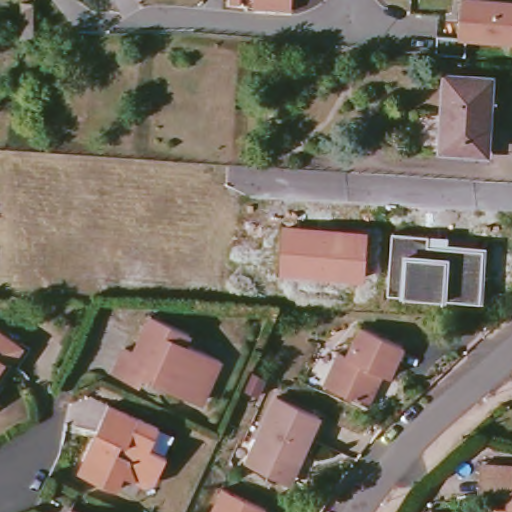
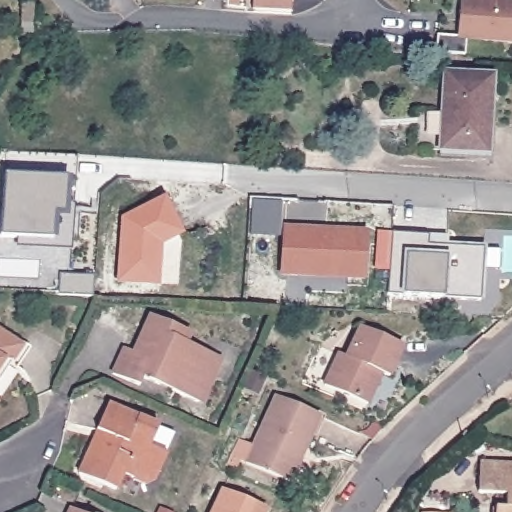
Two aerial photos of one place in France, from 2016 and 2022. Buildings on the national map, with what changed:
unchanged [(247,0),(246,6),(232,5),(232,0),(247,0)]
unchanged [(293,0),(292,13),(254,10),(255,0),(293,0)]
unchanged [(456,39),(459,0),(465,0),(512,4),(512,45),(464,40),(463,57),(434,55),(435,36),(456,39)]
unchanged [(442,151),(444,116),(447,75),(492,79),(487,154),(442,151)]
new [(73,206),(71,253),(15,249),(15,238),(1,237),(3,176),(5,151),(78,156),(73,206)]
new [(182,235),(161,246),(159,286),(116,283),(120,218),(164,196),(182,235)]
unchanged [(364,281),(279,277),(283,227),(366,231),(364,281)]
unchanged [(442,298),(401,296),(388,294),(392,233),(428,236),(427,245),(483,249),(481,301),(442,298)]
unchanged [(171,392),(168,385),(161,382),(158,387),(142,379),(138,387),(111,374),(123,349),(135,353),(151,317),(192,334),(186,345),(221,362),(203,401),(196,403),(171,392)]
unchanged [(18,341),(20,343),(9,360),(8,359),(3,359),(0,362),(0,329),(18,341)]
unchanged [(366,408),(324,389),(338,356),(345,359),(358,330),(401,349),(388,380),(381,377),(377,383),(366,408)]
unchanged [(276,479),(244,465),(274,400),(318,420),(303,450),(288,485),(276,479)]
unchanged [(159,424),(149,445),(166,453),(156,477),(146,482),(123,472),(115,487),(78,470),(88,445),(97,442),(102,430),(95,426),(107,401),(159,424)]
unchanged [(496,505),(506,505),(506,492),(479,490),(480,462),(512,464),(512,512),(495,512),(496,505)]
unchanged [(227,491),(271,510),(269,512),(217,512),(227,491)]
unchanged [(74,512),(67,512),(68,509),(74,512)]

